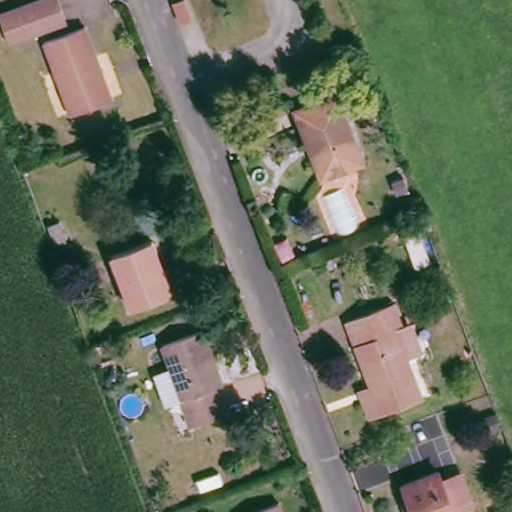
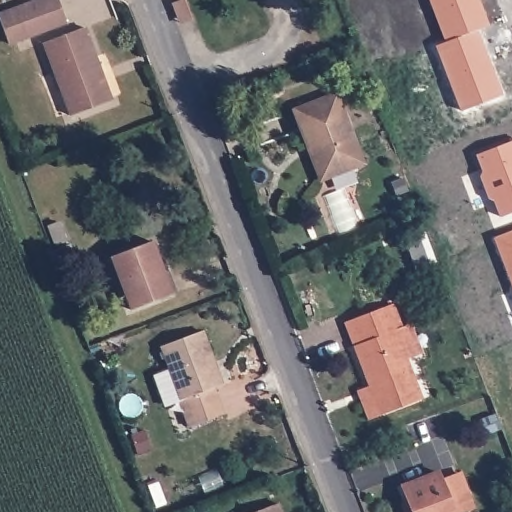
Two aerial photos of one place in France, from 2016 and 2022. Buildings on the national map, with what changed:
unchanged [(64,0),(72,21),(15,42),(3,13),(37,0),(64,0)]
unchanged [(183,0),(190,17),(178,21),(171,4),(182,0),(183,0)]
new [(445,42),(429,0),(476,0),(486,27),(474,31),(445,42)]
unchanged [(85,24),(110,91),(67,107),(42,39),(85,24)]
new [(474,31),(499,97),(460,112),(435,46),(445,42),(474,31)]
unchanged [(312,144),(300,111),(340,96),(365,161),(332,172),(323,176),(312,144)]
new [(500,217),(493,200),(488,198),(480,177),(482,172),(476,155),(512,141),(512,213),(500,217)]
unchanged [(410,265),(398,234),(412,229),(423,260),(410,265)]
new [(500,254),(495,237),(512,231),(512,283),(500,254)]
unchanged [(150,238),(171,293),(127,308),(106,254),(150,238)]
unchanged [(390,306),(425,397),(385,411),(349,321),(390,306)]
unchanged [(205,332),(227,387),(217,390),(227,414),(197,426),(166,346),(205,332)]
unchanged [(403,503),(412,501),(405,483),(440,471),(443,479),(462,472),(474,506),(459,512),(407,512),(403,503)]
unchanged [(281,503),(284,512),(257,512),(281,503)]

